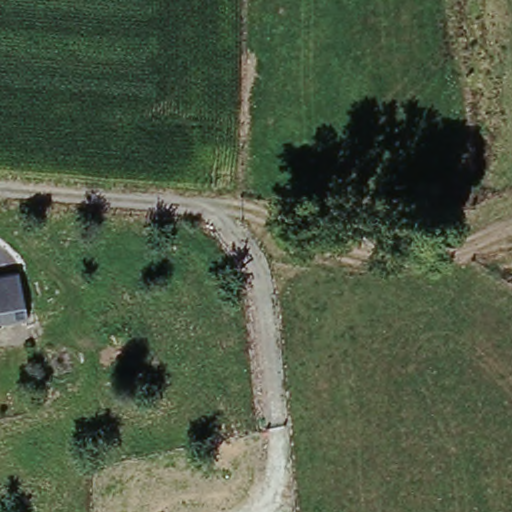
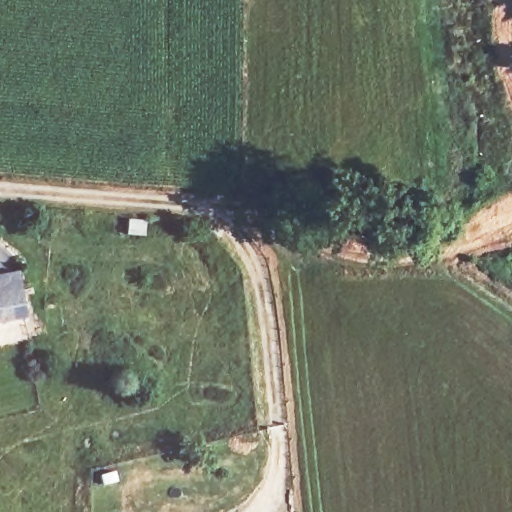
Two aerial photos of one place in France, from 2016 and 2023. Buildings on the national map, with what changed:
unchanged [(0,270),(22,265),(30,299),(0,306),(0,270)]

